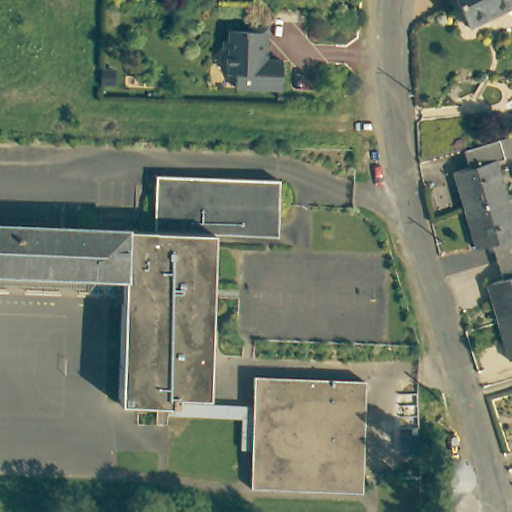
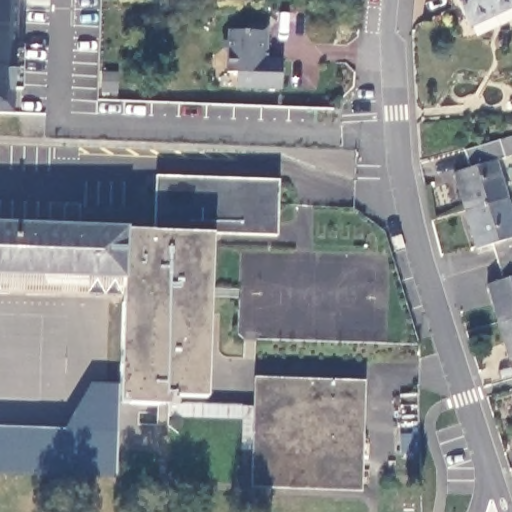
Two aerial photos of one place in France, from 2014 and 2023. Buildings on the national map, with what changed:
new [(0,111),(0,0),(17,0),(12,112),(0,111)]
unchanged [(446,2),(448,0),(512,0),(512,9),(498,13),(502,18),(477,38),(446,2)]
unchanged [(225,40),(230,37),(230,29),(247,30),(247,26),(267,27),(266,60),(282,61),(280,89),(230,87),(229,80),(227,80),(227,49),(225,47),(225,40)]
unchanged [(456,173),(473,168),(470,152),(512,141),(512,158),(498,162),(510,201),(466,212),(456,173)]
unchanged [(152,172),(278,175),(277,231),(209,229),(209,396),(177,394),(177,405),(171,405),(121,402),(122,276),(0,275),(0,227),(152,227),(152,172)]
unchanged [(512,210),(512,257),(497,261),(493,245),(476,249),(466,212),(510,201),(512,210)]
unchanged [(497,319),(487,285),(503,280),(497,261),(512,257),(512,315),(497,319)]
unchanged [(508,361),(497,319),(512,315),(512,360),(508,361)]
unchanged [(257,374),(367,378),(365,491),(256,487),(256,448),(256,408),(257,374)]
new [(0,475),(0,427),(65,429),(91,382),(122,381),(121,402),(115,478),(0,475)]
unchanged [(256,408),(256,448),(245,447),(247,418),(171,416),(171,405),(177,405),(256,408)]
unchanged [(448,452),(437,455),(431,432),(443,429),(448,452)]

